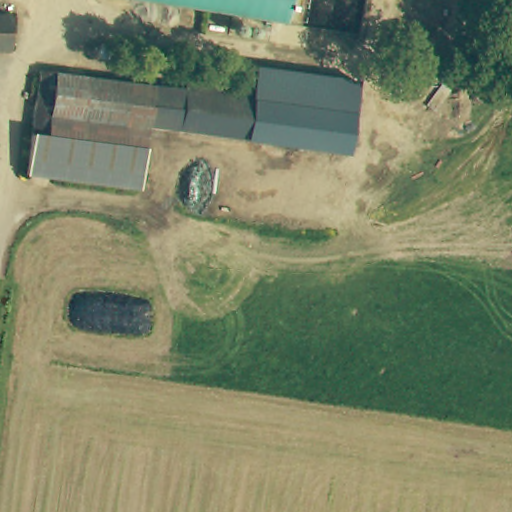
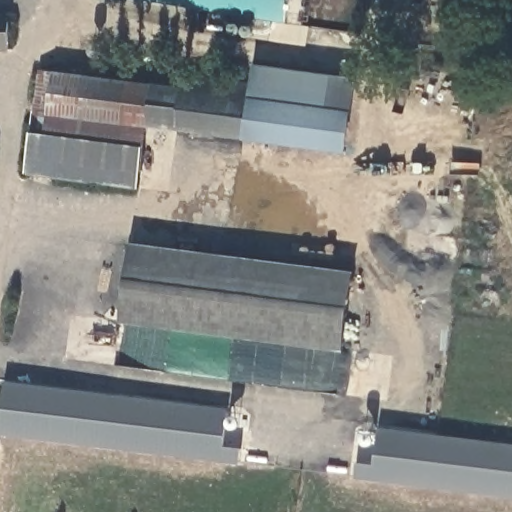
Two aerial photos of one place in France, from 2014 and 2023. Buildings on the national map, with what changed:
unchanged [(180,0),(283,0),(281,15),(180,0)]
unchanged [(10,49),(0,49),(0,12),(12,12),(10,49)]
unchanged [(322,111),(347,114),(342,152),(146,127),(138,190),(23,175),(36,72),(184,90),(185,78),(247,86),(250,67),(326,77),(322,111)]
new [(355,272),(344,351),(118,322),(129,243),(355,272)]
new [(0,424),(5,382),(227,408),(224,446),(242,448),(239,464),(0,435),(0,424)]
new [(241,424),(237,429),(231,428),(227,423),(229,418),(234,414),(239,415),(241,424)]
new [(355,479),(357,462),(375,464),(380,427),(512,444),(512,498),(355,479)]
new [(376,442),(373,444),(370,445),(363,440),(364,434),(368,432),(374,432),(376,438),(376,442)]

